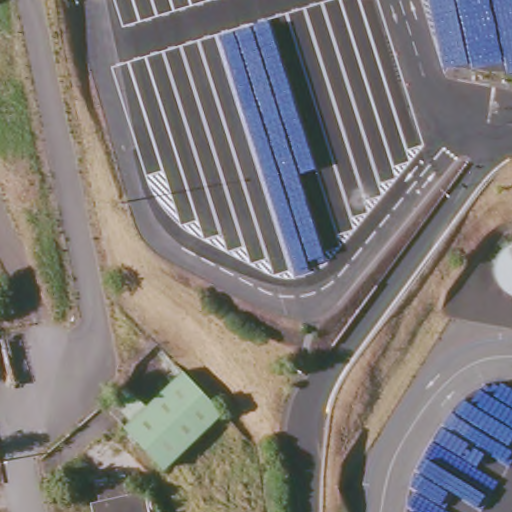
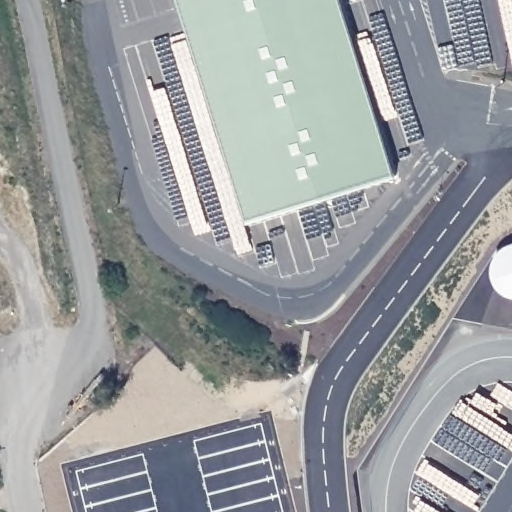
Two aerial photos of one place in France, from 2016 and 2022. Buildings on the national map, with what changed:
new [(342,0),(397,173),(249,220),(179,0),(342,0)]
unchanged [(165,469),(104,404),(127,384),(149,406),(185,373),(224,413),(165,469)]
demolished [(100,502),(96,483),(124,477),(129,495),(145,492),(150,512),(93,512),(91,504),(100,502)]

